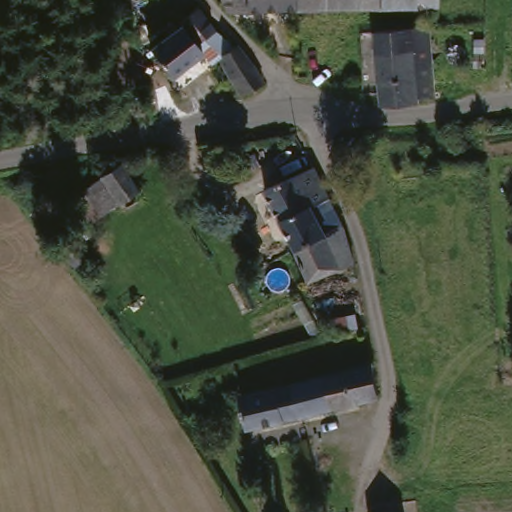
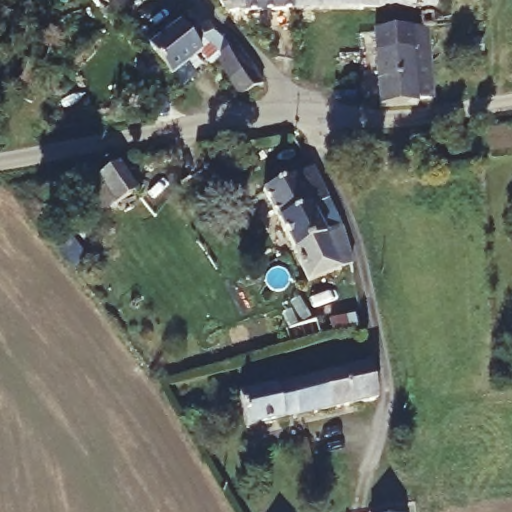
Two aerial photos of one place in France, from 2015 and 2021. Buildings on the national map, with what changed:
unchanged [(288,16),(224,16),(219,16),(211,0),(288,0),(288,16)]
unchanged [(372,11),(288,16),(288,0),(372,0),(372,11)]
unchanged [(429,8),(372,11),(372,0),(429,0),(429,8)]
unchanged [(206,37),(228,52),(229,51),(244,74),(244,75),(255,90),(238,102),(227,86),(211,62),(202,68),(195,57),(164,79),(142,52),(155,42),(161,37),(170,31),(168,27),(188,14),(191,12),(206,37)]
unchanged [(413,99),(413,105),(375,109),(373,85),(370,35),(373,35),(408,35),(412,34),(412,17),(428,16),(428,34),(428,65),(431,96),(413,99)]
unchanged [(146,192),(128,204),(110,177),(128,165),(146,192)]
unchanged [(348,262),(315,272),(306,273),(296,250),(282,224),(265,195),(294,179),(311,170),(326,199),(338,226),(341,234),(348,262)]
unchanged [(341,371),(366,365),(373,395),(348,401),(240,426),(234,404),(234,400),(267,391),(268,390),(285,386),(307,380),(341,371)]

